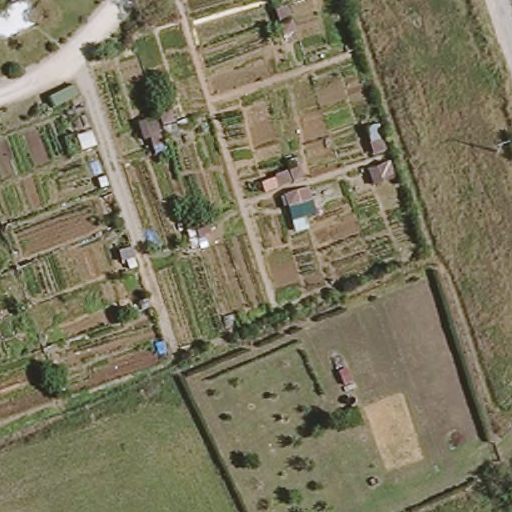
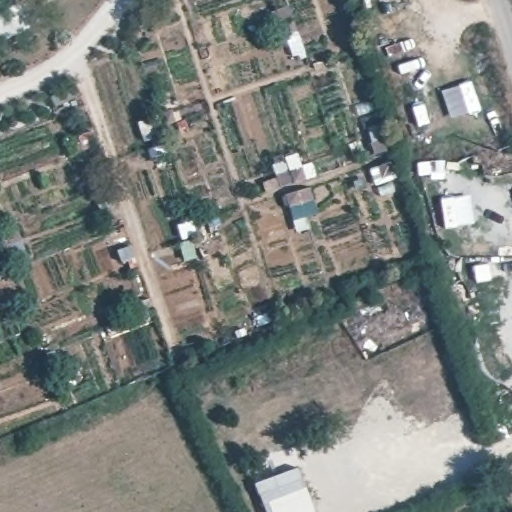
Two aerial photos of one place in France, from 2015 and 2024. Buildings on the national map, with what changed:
new [(31,0),(41,21),(0,41),(0,13),(26,0),(31,0)]
new [(299,467),(315,512),(264,512),(253,483),(299,467)]
unchanged [(505,512),(491,512),(485,496),(496,491),(505,512)]

